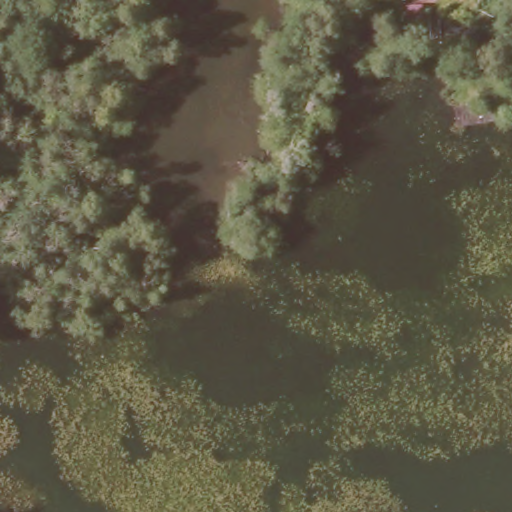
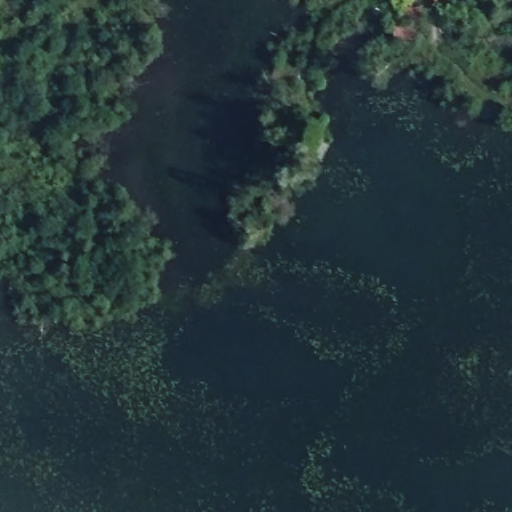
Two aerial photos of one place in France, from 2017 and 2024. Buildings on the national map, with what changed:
unchanged [(260,236),(254,262),(243,259),(248,234),(260,236)]

